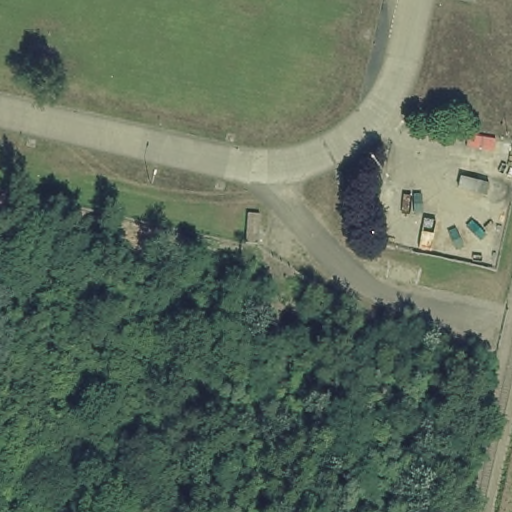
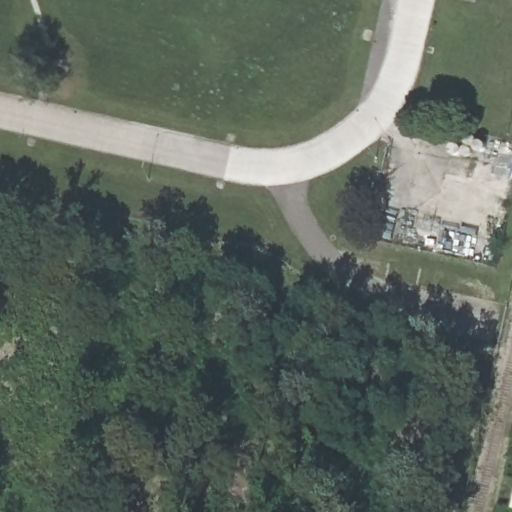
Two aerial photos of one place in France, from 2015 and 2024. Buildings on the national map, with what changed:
[]

